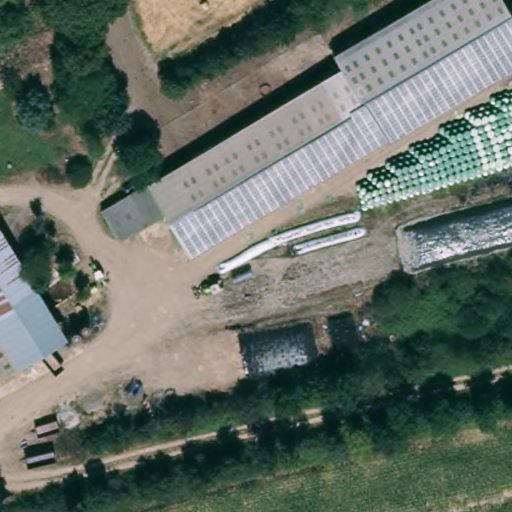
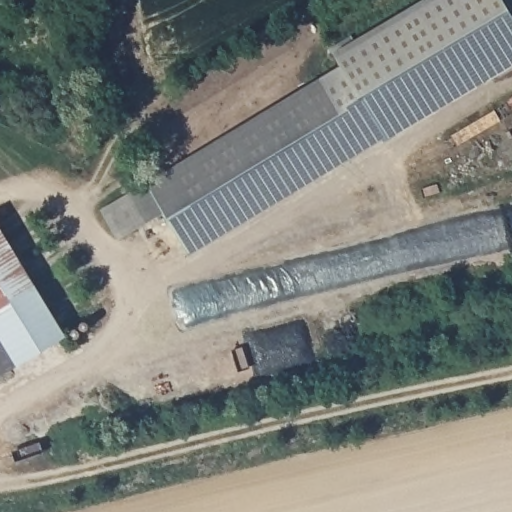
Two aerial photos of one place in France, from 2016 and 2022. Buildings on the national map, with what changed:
unchanged [(319,75),(336,65),(330,54),(419,0),(504,0),(512,12),(512,61),(365,152),(357,137),(327,88),(324,82),(319,75)]
unchanged [(357,137),(182,235),(166,208),(156,211),(144,219),(127,191),(324,82),(357,137)]
unchanged [(69,340),(0,376),(0,219),(5,216),(69,340)]

